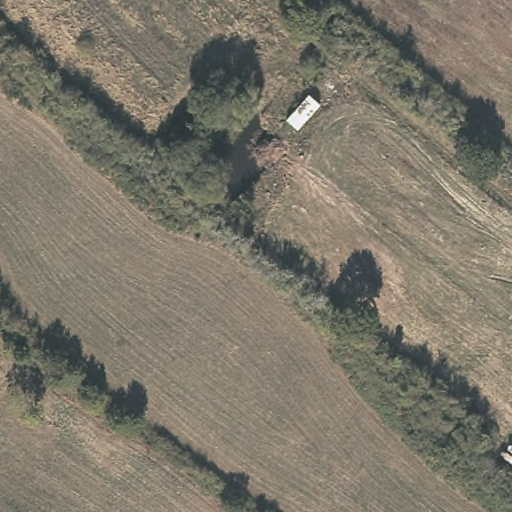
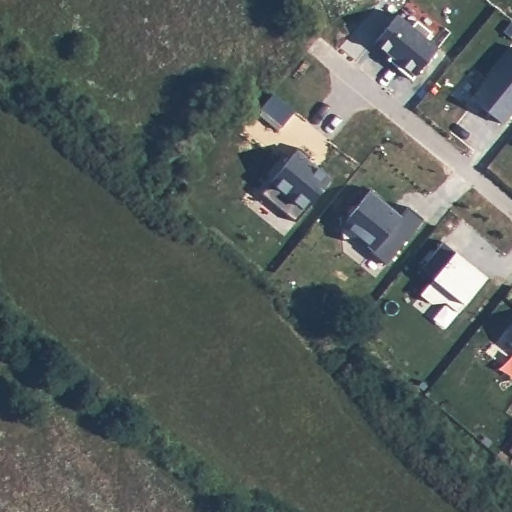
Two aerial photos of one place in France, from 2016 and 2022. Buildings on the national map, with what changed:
new [(385,58),(390,53),(376,41),(398,14),(437,47),(410,78),(385,58)]
new [(512,45),(512,112),(502,123),(470,96),(512,45)]
new [(293,219),(262,194),(299,146),(311,155),(306,159),(331,177),(293,219)]
new [(410,207),(422,218),(385,261),(364,244),(367,241),(344,224),(372,190),(403,217),(410,207)]
new [(418,266),(442,239),(455,250),(489,277),(466,305),(461,313),(446,302),(431,304),(419,294),(433,278),(418,266)]
new [(512,338),(512,345),(509,342),(512,338)]

